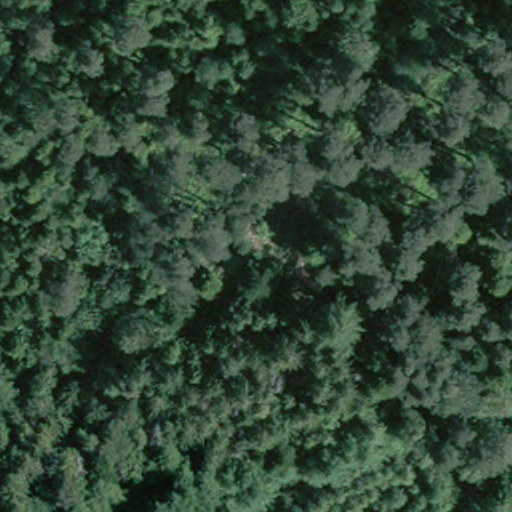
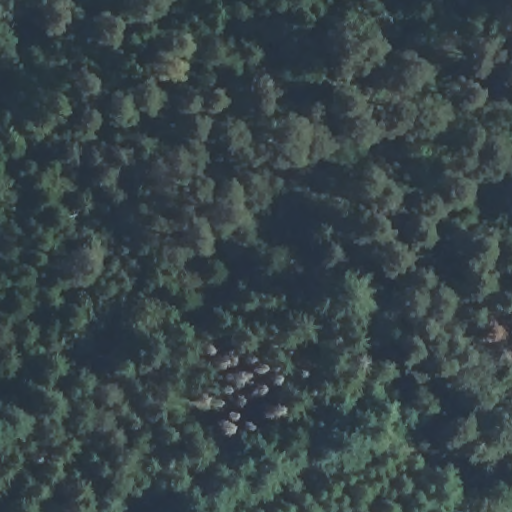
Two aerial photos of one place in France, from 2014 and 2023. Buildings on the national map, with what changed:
[]

